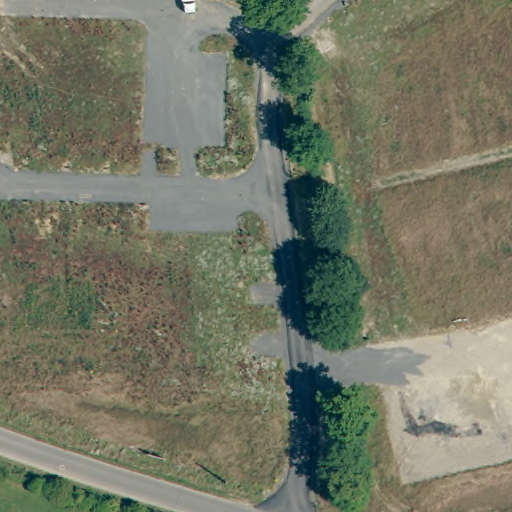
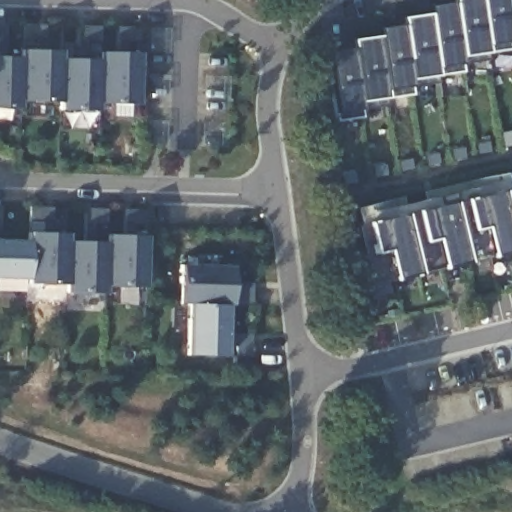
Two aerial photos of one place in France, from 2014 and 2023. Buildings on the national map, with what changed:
new [(487,53),(488,61),(463,64),(463,73),(436,76),(437,83),(412,88),(412,94),(386,99),(387,105),(361,109),(362,118),(337,121),(339,113),(336,113),(329,51),(353,48),(352,40),(379,37),(378,29),(403,26),(402,18),(430,14),(429,6),(453,4),(453,0),(506,0),(512,46),(512,50),(487,53)]
new [(9,58),(20,58),(21,50),(25,50),(23,24),(47,24),(46,51),(63,51),(62,58),(76,56),(78,26),(101,27),(100,52),(115,53),(116,27),(140,29),(141,106),(98,104),(98,113),(60,110),(60,103),(21,101),(21,110),(0,109),(0,23),(6,24),(9,58)]
new [(368,285),(352,226),(357,225),(353,209),(402,197),(407,203),(429,199),(423,192),(502,174),(510,189),(512,188),(512,251),(368,285)]
new [(5,239),(28,240),(29,232),(33,232),(29,207),(51,208),(56,234),(68,235),(68,242),(84,242),(86,208),(109,209),(107,234),(122,234),(123,209),(148,211),(146,235),(143,288),(104,286),(104,294),(66,293),(66,285),(27,284),(26,279),(0,279),(0,207),(1,207),(5,239)]
unchanged [(231,304),(227,304),(227,357),(188,356),(189,304),(177,303),(179,264),(234,266),(231,304)]

